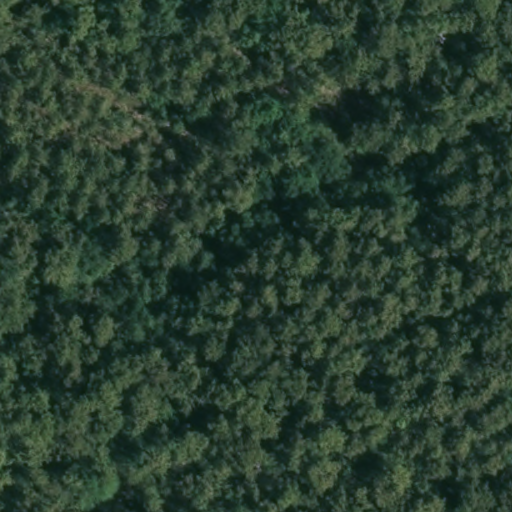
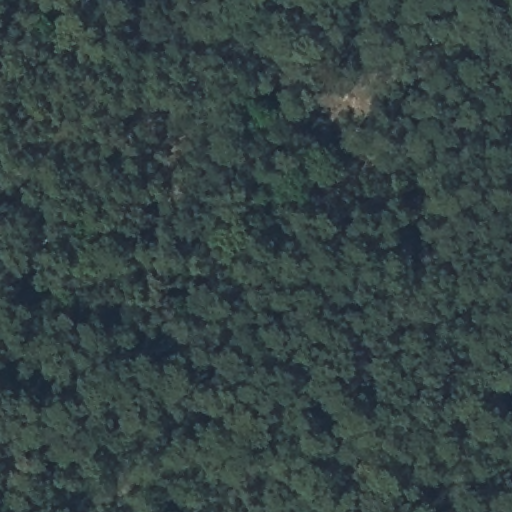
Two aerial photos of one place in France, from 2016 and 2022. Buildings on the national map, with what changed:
unchanged [(280,34),(277,56),(262,55),(265,32),(280,34)]

